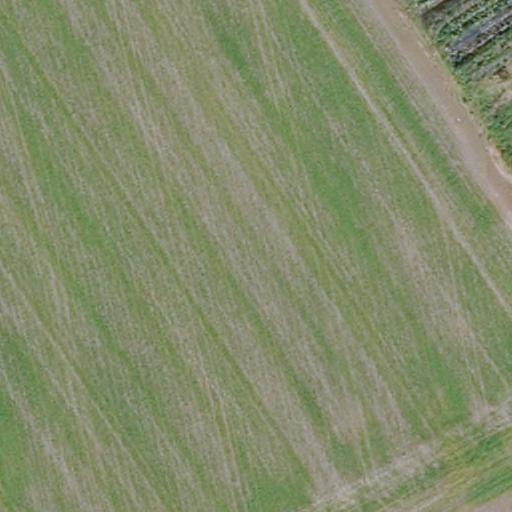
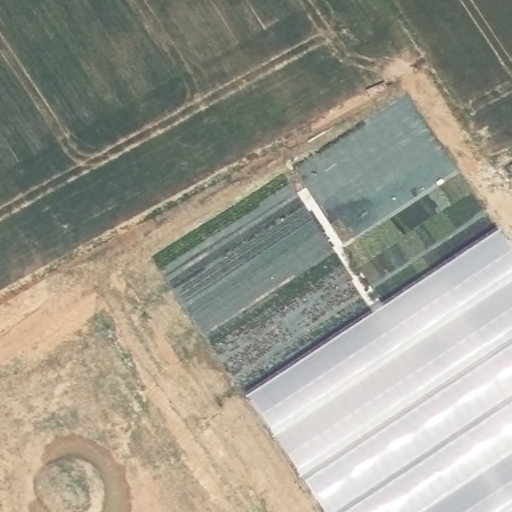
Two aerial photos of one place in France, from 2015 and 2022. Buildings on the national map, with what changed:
new [(248,394),(502,232),(512,247),(512,512),(325,512),(248,394)]

